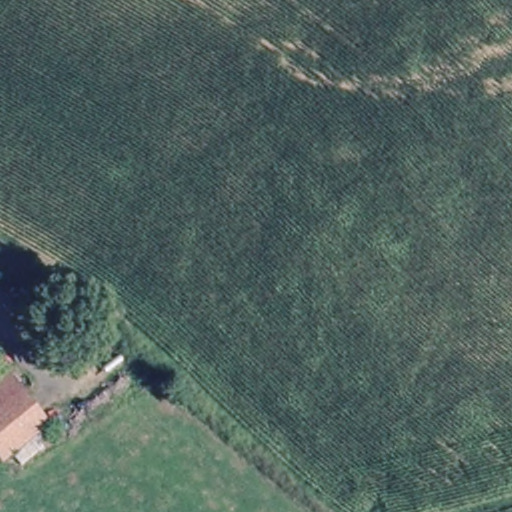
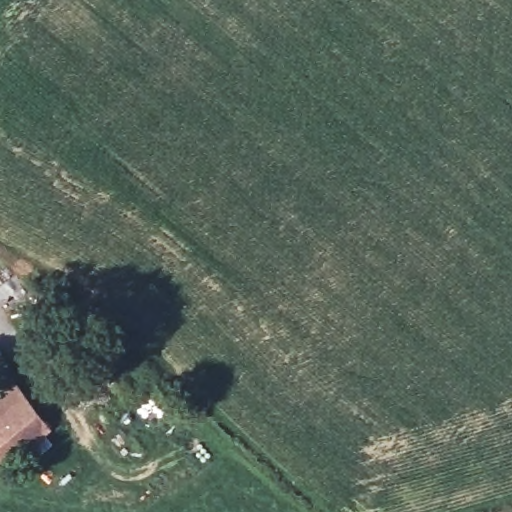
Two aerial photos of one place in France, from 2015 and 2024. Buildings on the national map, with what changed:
unchanged [(42,413),(49,419),(9,456),(0,447),(0,372),(42,413)]

